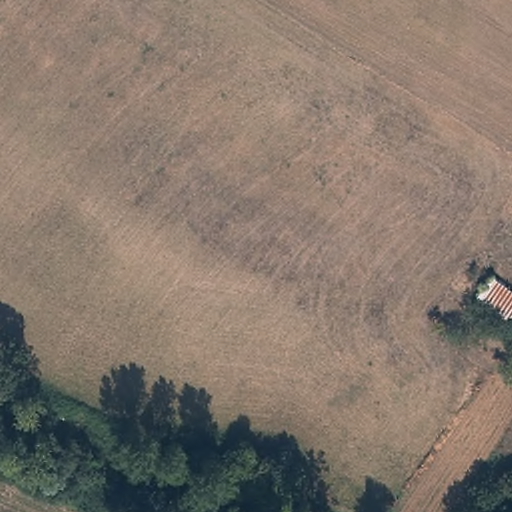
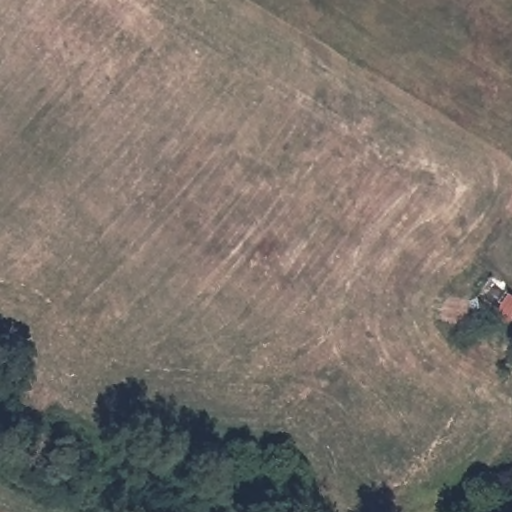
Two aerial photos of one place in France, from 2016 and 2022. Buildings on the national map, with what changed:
unchanged [(495,272),(512,285),(512,324),(477,298),(495,272)]

